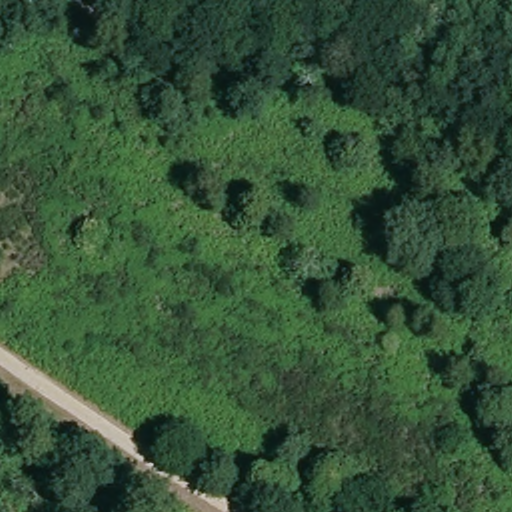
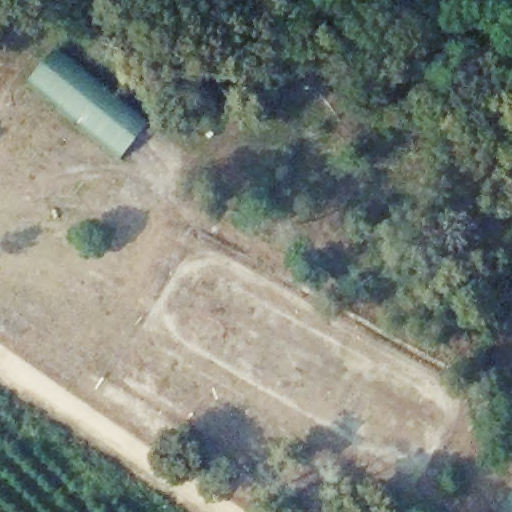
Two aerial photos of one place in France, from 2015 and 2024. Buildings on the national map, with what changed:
new [(120,147),(116,152),(47,95),(44,83),(35,76),(54,52),(59,56),(62,51),(150,122),(126,152),(120,147)]

